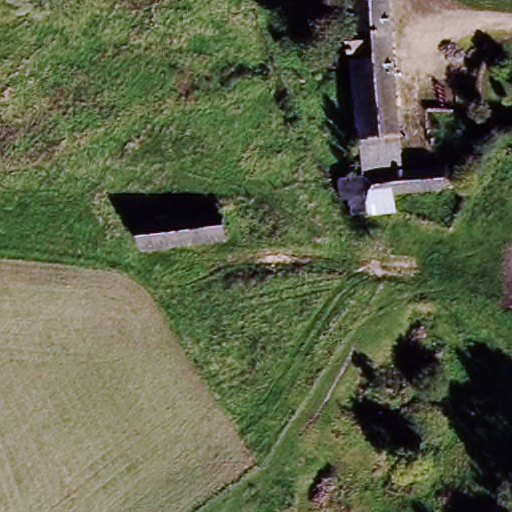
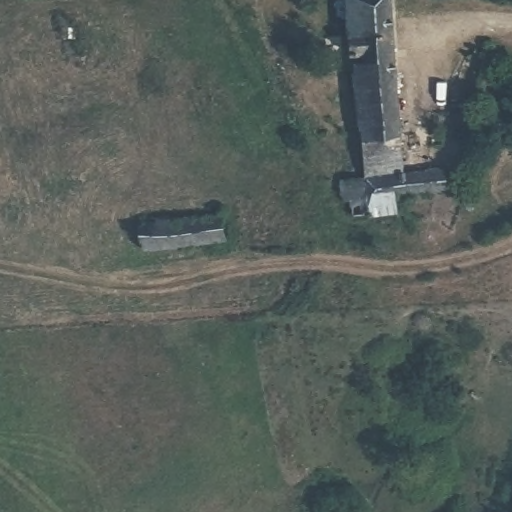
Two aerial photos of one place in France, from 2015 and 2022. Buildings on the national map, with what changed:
unchanged [(347,64),(359,63),(358,50),(342,51),(338,0),(382,0),(387,81),(350,83),(347,64)]
unchanged [(390,137),(353,140),(350,83),(387,81),(390,137)]
unchanged [(342,199),(360,196),(335,199),(333,179),(357,177),(353,140),(390,137),(394,174),(440,171),(441,190),(388,195),(388,212),(343,215),(342,199)]
unchanged [(220,221),(223,245),(141,255),(138,231),(220,221)]

